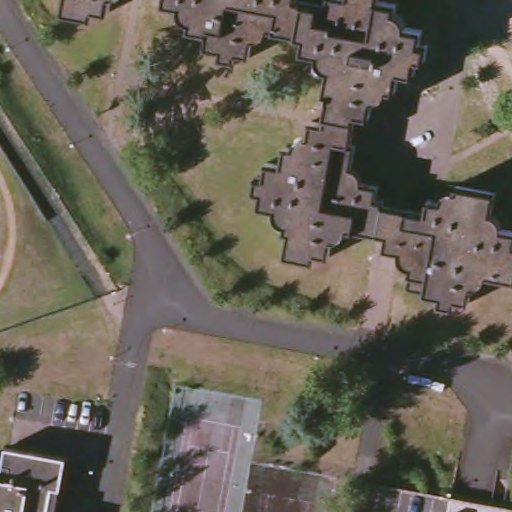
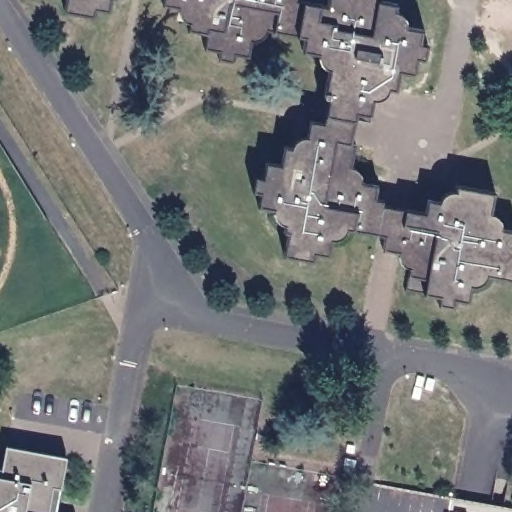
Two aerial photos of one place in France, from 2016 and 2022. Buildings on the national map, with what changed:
unchanged [(97,18),(66,12),(68,0),(101,0),(97,18)]
unchanged [(115,1),(109,0),(115,0),(115,1)]
unchanged [(351,171),(387,178),(383,201),(426,209),(428,194),(453,199),(457,180),(495,187),(490,222),(512,227),(512,277),(477,269),(471,300),(457,297),(455,304),(439,301),(440,294),(407,287),(412,263),(384,257),(386,247),(338,237),(337,248),(318,244),(315,258),(287,252),(287,248),(282,247),(288,209),(260,203),(262,190),(255,188),(257,170),(266,172),(269,156),(285,159),(287,141),(308,145),(313,115),(328,118),(332,96),(327,95),(335,55),(305,48),(308,36),(257,26),(250,57),(237,55),(236,64),(220,60),(221,52),(205,49),(208,34),(191,31),(194,15),(173,11),(176,0),(395,0),(410,3),(407,22),(425,25),(422,37),(430,39),(427,56),(417,55),(415,71),(399,69),(396,83),(377,80),(372,108),(360,106),(353,136),(357,137),(351,171)]
unchanged [(62,485),(53,484),(48,512),(0,512),(0,472),(6,445),(67,456),(62,485)]

